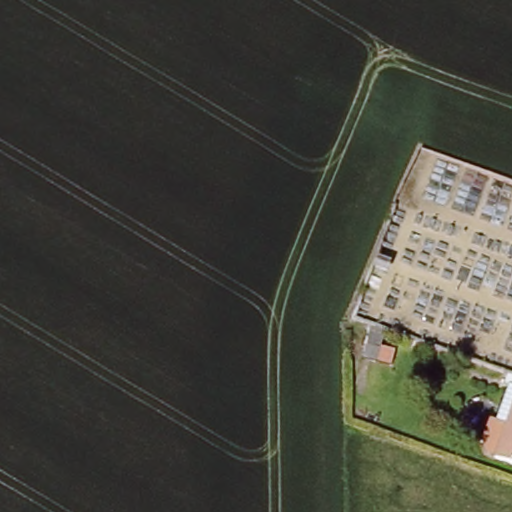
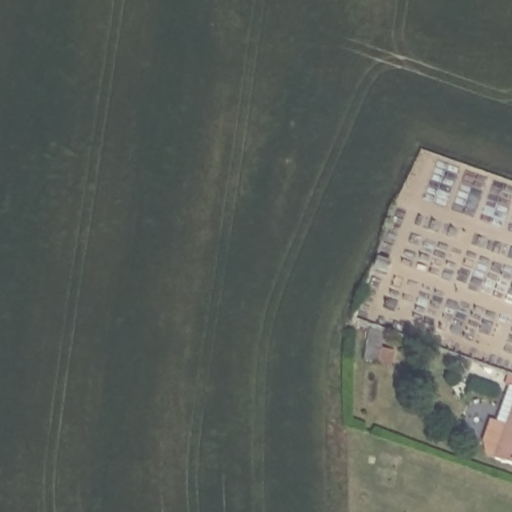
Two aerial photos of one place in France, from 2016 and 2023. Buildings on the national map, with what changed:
unchanged [(492,419),(508,424),(512,414),(512,462),(497,457),(502,443),(485,437),(492,419)]

